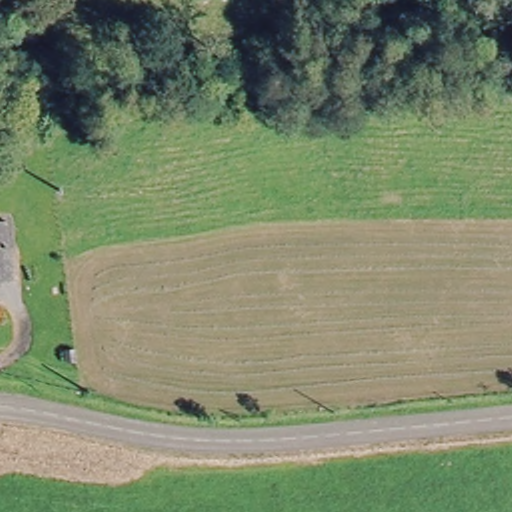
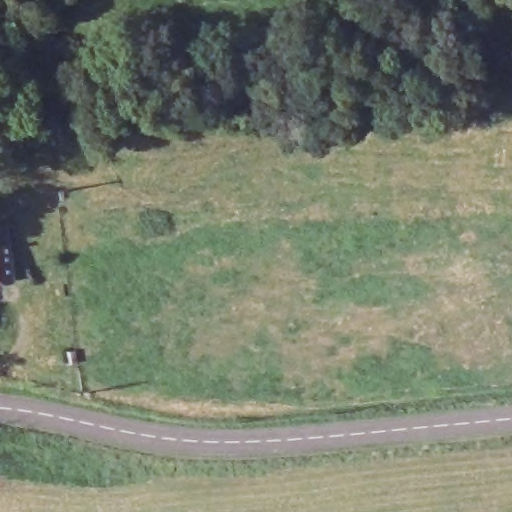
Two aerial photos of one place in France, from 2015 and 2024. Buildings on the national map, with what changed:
unchanged [(16,267),(17,278),(0,280),(0,221),(12,220),(16,267)]

